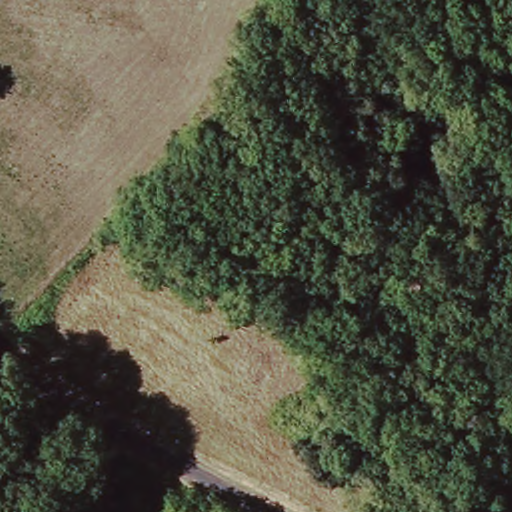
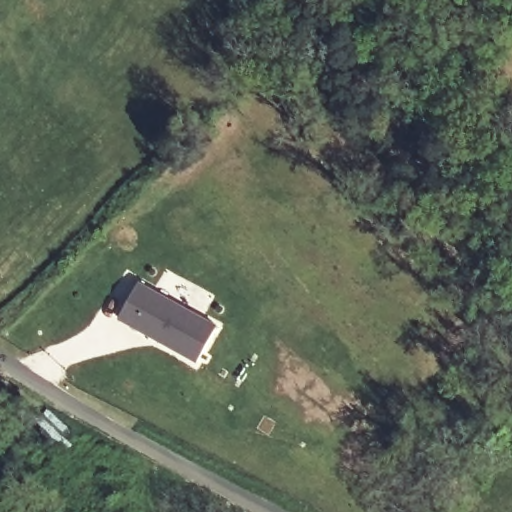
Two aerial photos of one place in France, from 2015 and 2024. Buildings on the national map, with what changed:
new [(138,283),(218,325),(198,361),(118,320),(138,283)]

